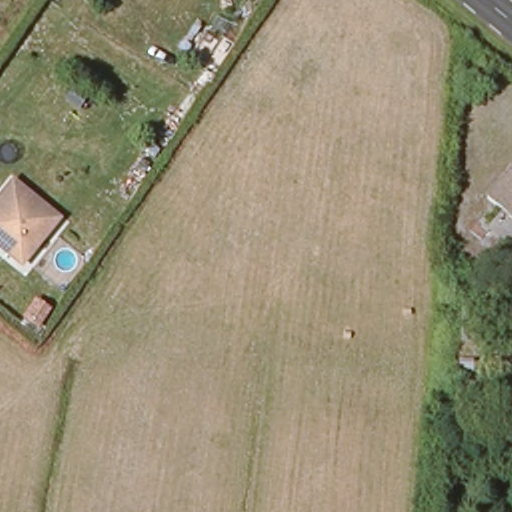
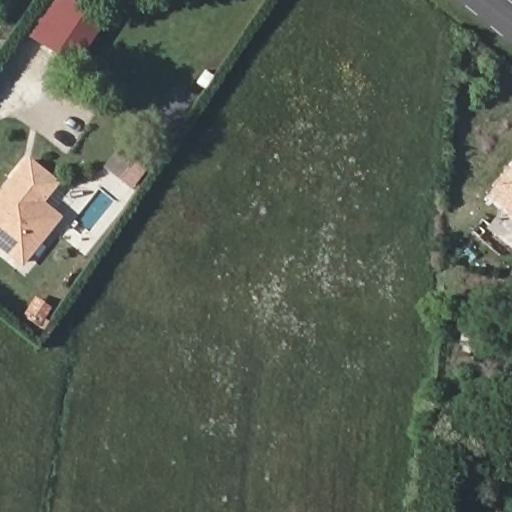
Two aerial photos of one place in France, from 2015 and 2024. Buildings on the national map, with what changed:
new [(48,0),(68,0),(103,25),(74,68),(25,36),(48,0)]
new [(28,157),(59,183),(44,204),(11,178),(28,157)]
unchanged [(44,204),(58,215),(20,261),(0,244),(0,192),(11,178),(44,204)]
unchanged [(496,238),(510,221),(495,208),(512,188),(512,251),(496,238)]
unchanged [(475,245),(481,238),(491,246),(485,253),(475,245)]

